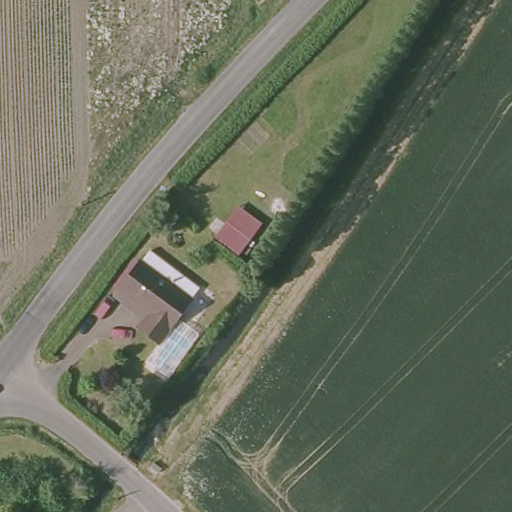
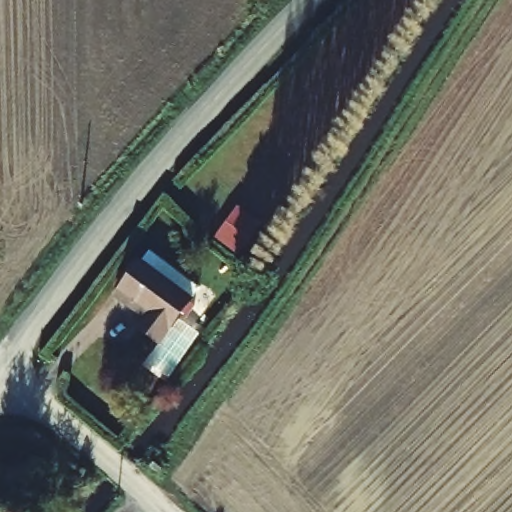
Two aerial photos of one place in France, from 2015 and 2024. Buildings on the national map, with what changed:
unchanged [(131,340),(142,328),(114,303),(136,277),(145,267),(193,304),(184,314),(151,356),(131,340)]

